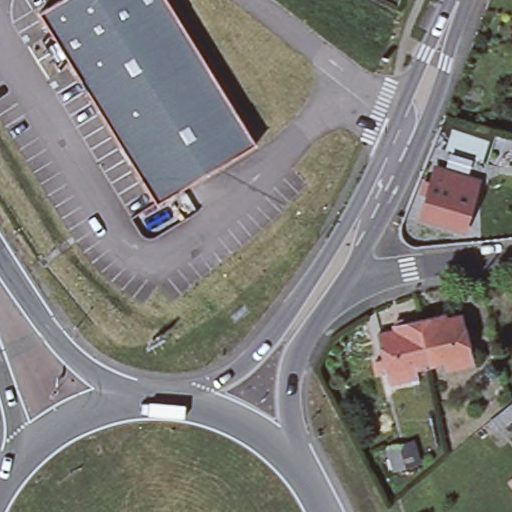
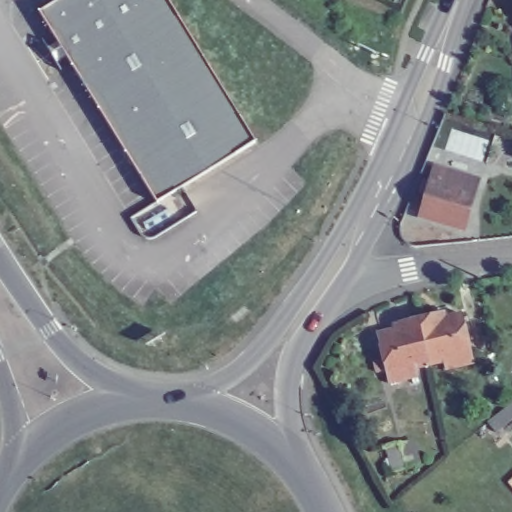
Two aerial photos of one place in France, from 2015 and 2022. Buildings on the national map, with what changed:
unchanged [(171,0),(255,138),(156,199),(66,51),(55,58),(46,43),(57,36),(38,7),(50,0),(171,0)]
unchanged [(472,179),(468,194),(473,195),(462,229),(420,216),(426,195),(423,194),(427,181),(435,184),(439,169),(472,179)]
unchanged [(443,303),(445,308),(461,304),(473,354),(445,360),(444,352),(430,355),(418,309),(443,303)]
unchanged [(418,309),(430,355),(415,359),(417,367),(389,373),(377,324),(393,320),(392,315),(418,309)]
unchanged [(502,427),(495,417),(512,403),(512,419),(502,427)]
unchanged [(385,448),(397,444),(405,468),(393,472),(385,448)]
unchanged [(508,483),(512,480),(512,487),(508,483)]

